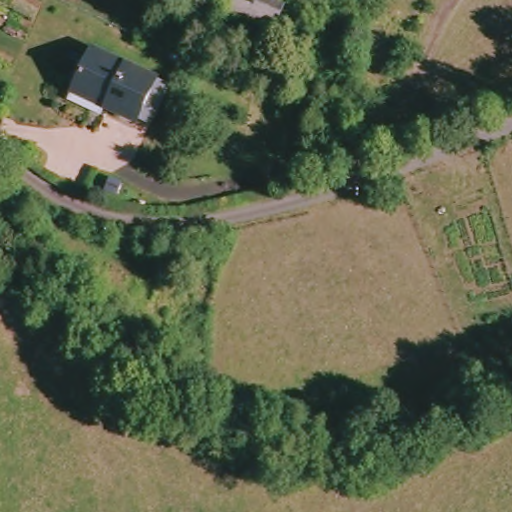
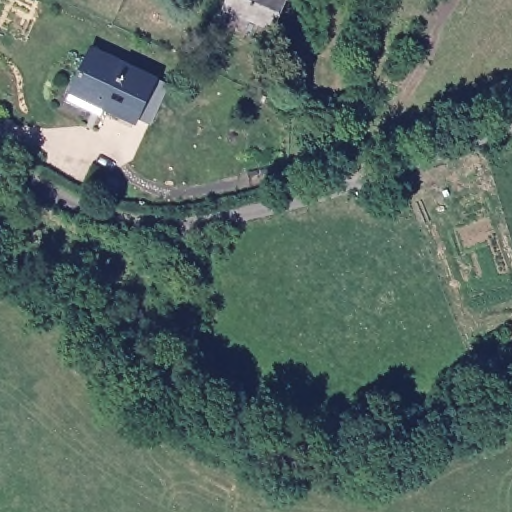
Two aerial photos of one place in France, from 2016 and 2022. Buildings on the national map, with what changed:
unchanged [(224,10),(228,0),(288,0),(275,31),(224,10)]
unchanged [(150,121),(137,115),(135,120),(105,107),(101,117),(68,102),(91,48),(155,76),(153,79),(166,85),(150,121)]

